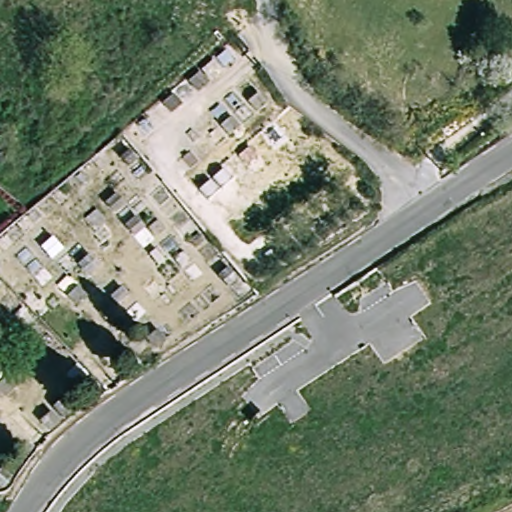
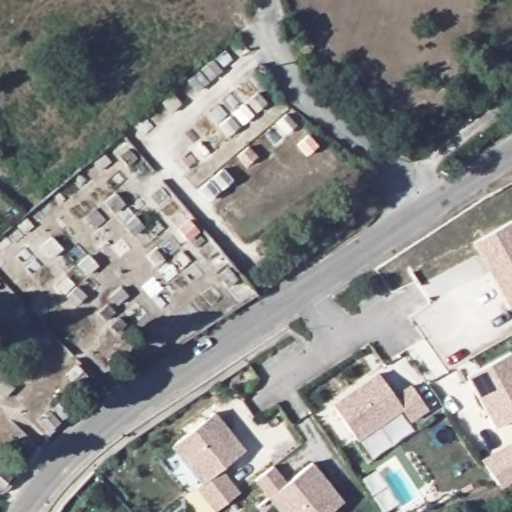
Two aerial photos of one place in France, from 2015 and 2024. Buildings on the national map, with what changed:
unchanged [(489,44),(512,34),(512,76),(504,79),(489,44)]
new [(512,220),(512,293),(482,235),(512,220)]
new [(512,354),(512,420),(494,429),(465,377),(511,352),(512,354)]
new [(330,404),(376,373),(393,395),(409,385),(426,409),(407,421),(400,410),(357,441),(330,404)]
new [(214,512),(212,512),(194,489),(198,484),(170,447),(213,413),(243,448),(221,467),(238,492),(214,512)]
new [(512,447),(512,479),(499,484),(483,462),(509,443),(512,447)]
new [(327,512),(279,512),(254,481),(273,466),(286,482),(311,462),(342,499),(327,512)]

